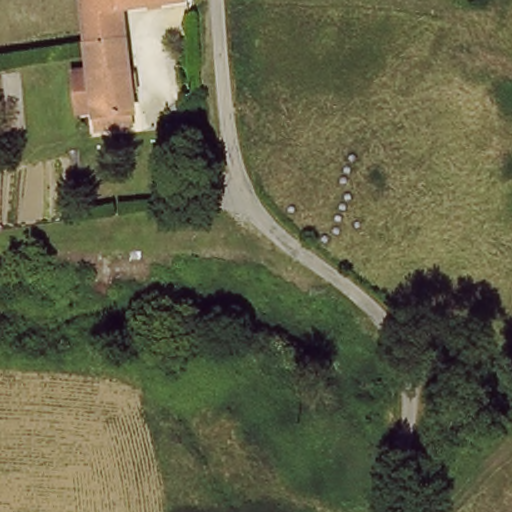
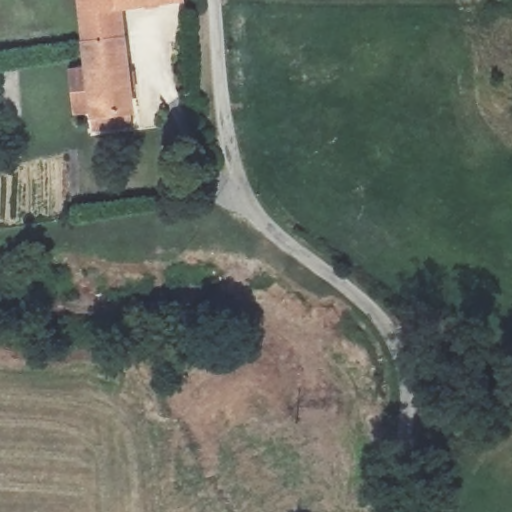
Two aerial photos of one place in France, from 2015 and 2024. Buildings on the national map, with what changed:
unchanged [(76,0),(155,0),(116,7),(119,31),(80,36),(76,0)]
unchanged [(119,31),(127,108),(123,111),(125,123),(92,125),(80,36),(119,31)]

